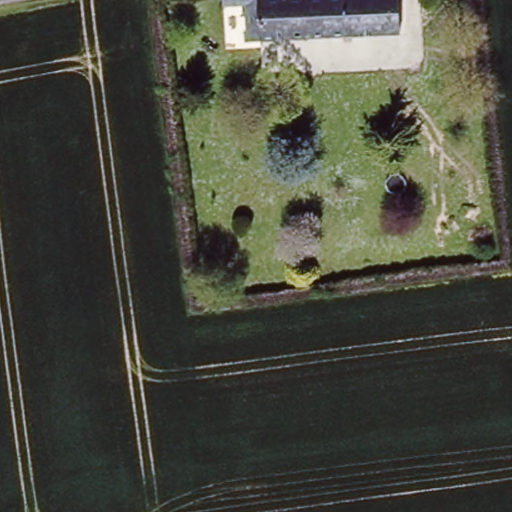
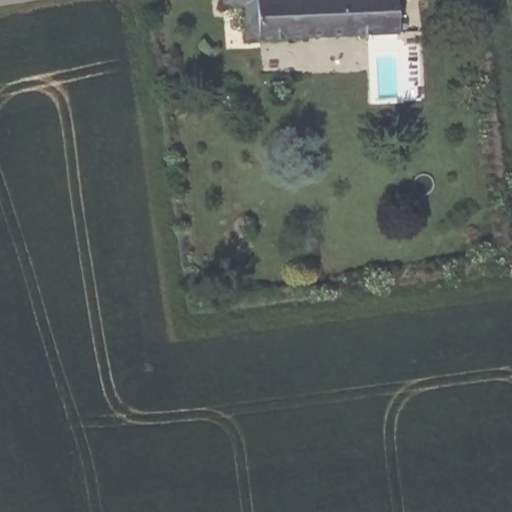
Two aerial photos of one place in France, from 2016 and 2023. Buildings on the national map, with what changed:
unchanged [(401,0),(402,33),(249,38),(249,3),(225,3),(225,0),(401,0)]

